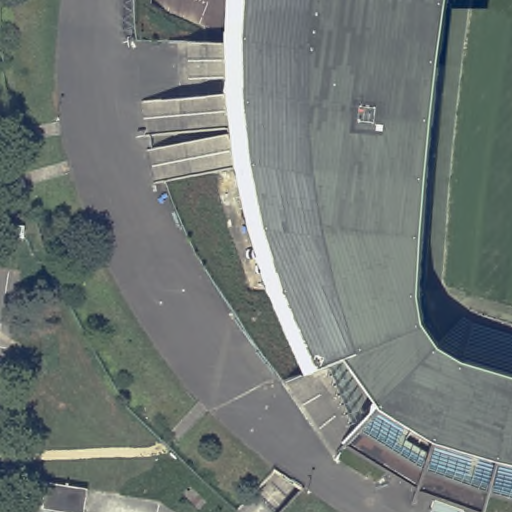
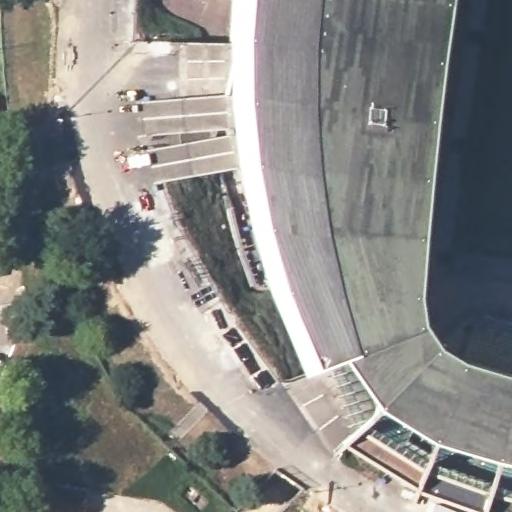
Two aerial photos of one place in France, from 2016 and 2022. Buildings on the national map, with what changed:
unchanged [(451,0),(437,111),(427,227),(424,275),(424,308),(429,329),(347,365),(318,377),(279,280),(264,235),(255,204),(249,171),(243,135),(239,84),(239,16),(241,0),(451,0)]
unchanged [(434,340),(441,352),(477,370),(488,374),(512,381),(512,465),(437,445),(379,408),(347,365),(429,329),(434,340)]
unchanged [(347,365),(379,408),(437,445),(512,465),(512,503),(500,500),(496,512),(490,512),(429,494),(424,508),(421,507),(424,493),(354,452),(344,461),(333,442),(297,385),(318,377),(347,365)]
unchanged [(86,491),(83,512),(58,512),(41,509),(45,483),(86,491)]

